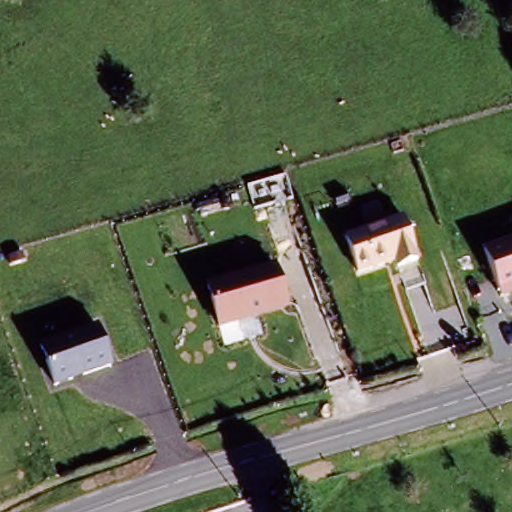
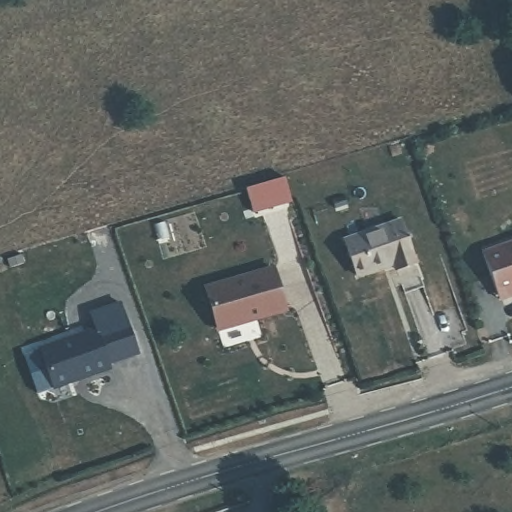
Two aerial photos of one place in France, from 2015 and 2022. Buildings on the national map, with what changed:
new [(293,197),(252,211),(245,187),(283,175),(293,197)]
unchanged [(395,265),(357,277),(346,244),(402,224),(417,266),(397,272),(395,265)]
unchanged [(485,255),(512,245),(512,293),(501,297),(485,255)]
unchanged [(285,311),(215,328),(205,287),(275,269),(285,311)]
unchanged [(98,328),(112,370),(53,388),(42,347),(98,328)]

